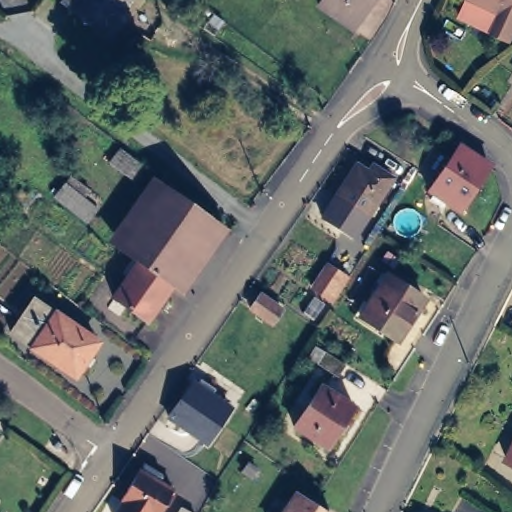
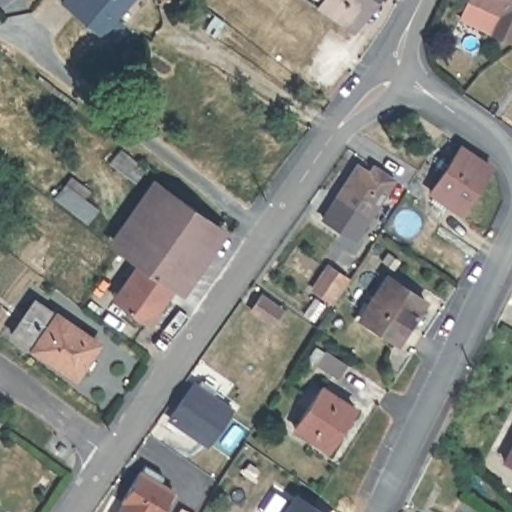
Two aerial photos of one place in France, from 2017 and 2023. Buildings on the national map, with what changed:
unchanged [(114,40),(107,32),(104,35),(77,13),(75,11),(65,2),(66,0),(135,0),(117,20),(126,27),(114,40)]
unchanged [(357,30),(322,6),(327,0),(377,0),(357,30)]
unchanged [(512,41),(490,31),(499,13),(471,0),(512,0),(512,41)]
unchanged [(463,208),(433,187),(465,143),(494,163),(463,208)]
unchanged [(119,167),(130,154),(145,168),(134,181),(119,167)]
unchanged [(371,220),(340,198),(361,165),(374,173),(377,167),(397,180),(371,220)]
unchanged [(71,209),(50,192),(65,174),(87,192),(71,209)]
unchanged [(155,329),(121,303),(146,268),(131,255),(152,224),(141,216),(162,185),(174,193),(225,229),(155,329)]
unchanged [(460,263),(454,275),(409,243),(415,235),(460,263)]
unchanged [(328,297),(312,286),(328,261),(344,272),(328,297)]
unchanged [(402,344),(364,318),(392,276),(429,301),(402,344)]
unchanged [(272,322),(252,307),(262,294),(282,308),(272,322)]
unchanged [(14,333),(37,299),(102,343),(79,378),(14,333)]
unchanged [(337,378),(318,364),(326,352),(347,365),(337,378)]
unchanged [(207,445),(169,418),(193,384),(198,388),(204,381),(212,386),(206,393),(230,410),(207,445)]
unchanged [(295,429),(322,387),(355,409),(327,450),(295,429)]
unchanged [(504,464),(512,449),(512,468),(504,464)]
unchanged [(112,512),(134,476),(152,487),(149,494),(162,502),(157,512),(112,512)]
unchanged [(290,512),(301,496),(319,507),(326,512),(290,512)]

